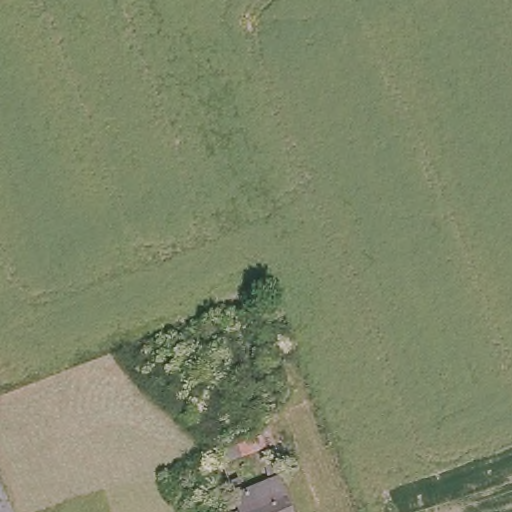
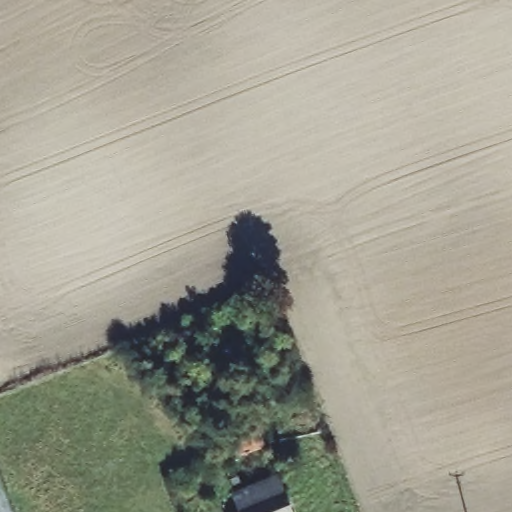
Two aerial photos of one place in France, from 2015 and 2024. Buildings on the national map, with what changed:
unchanged [(218,452),(261,436),(266,447),(222,463),(218,452)]
unchanged [(236,496),(278,479),(291,512),(242,512),(236,496)]

